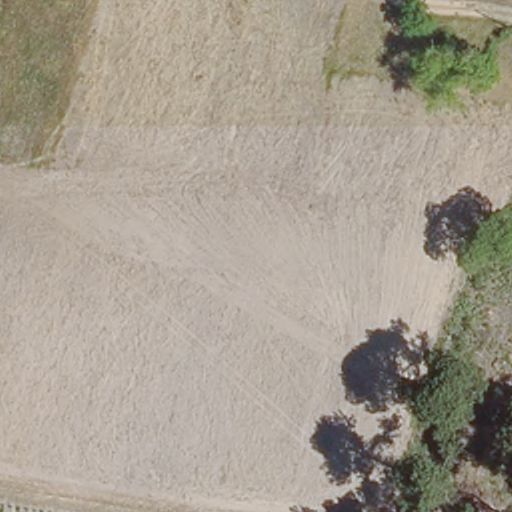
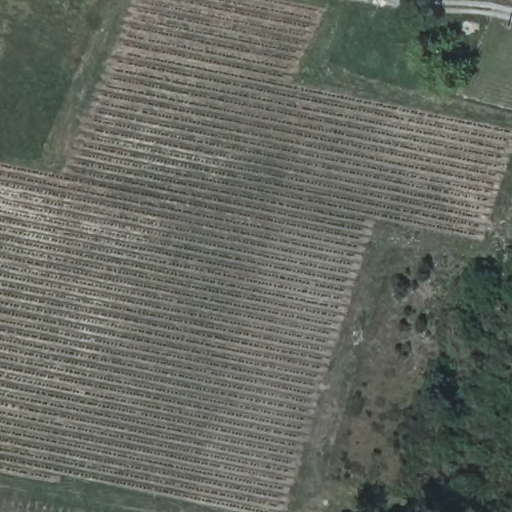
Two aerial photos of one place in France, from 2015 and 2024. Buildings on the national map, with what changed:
unchanged [(435,80),(433,85),(431,90),(415,80),(420,69),(435,80)]

